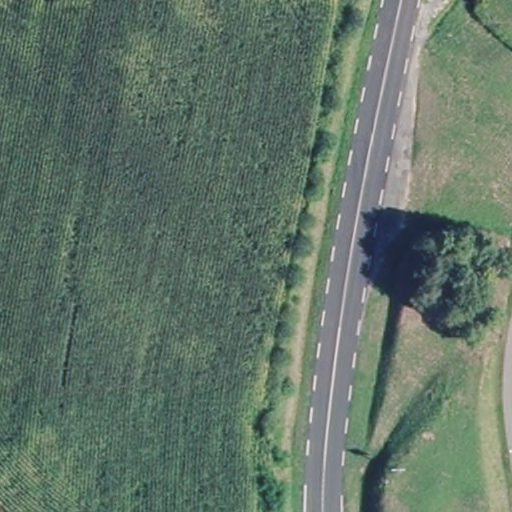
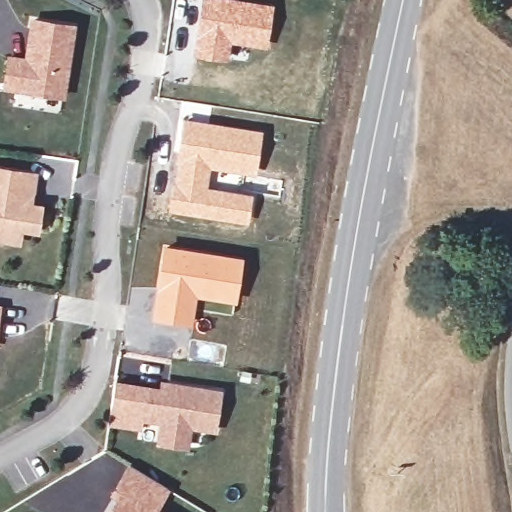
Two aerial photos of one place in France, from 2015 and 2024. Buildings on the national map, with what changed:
new [(248,0),(274,4),(268,47),(231,42),(229,59),(192,55),(200,0),(248,0)]
new [(1,91),(6,56),(23,57),(29,20),(75,27),(64,100),(1,91)]
new [(182,118),(262,129),(256,172),(211,167),(208,186),(253,193),(248,224),(167,210),(182,118)]
new [(0,243),(0,166),(37,172),(32,204),(42,206),(38,236),(22,234),(19,246),(0,243)]
new [(162,245),(243,256),(232,314),(218,312),(219,308),(224,308),(225,302),(197,298),(193,323),(151,318),(162,245)]
new [(2,303),(0,321),(0,303),(2,303)]
new [(192,429),(187,451),(155,446),(159,425),(144,422),(142,431),(107,425),(115,382),(159,387),(160,381),(222,390),(216,432),(192,429)]
new [(115,499),(108,496),(126,467),(170,491),(157,512),(107,512),(115,499)]

